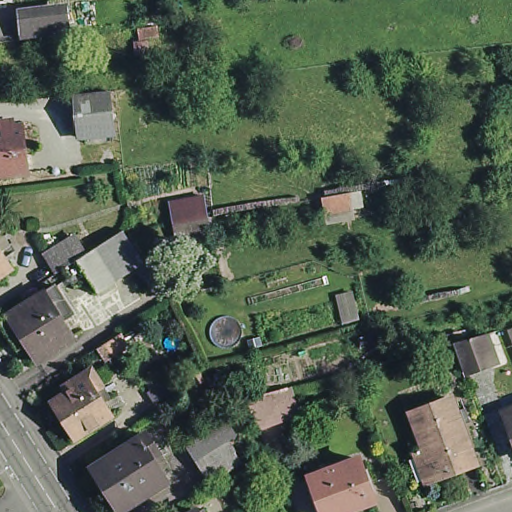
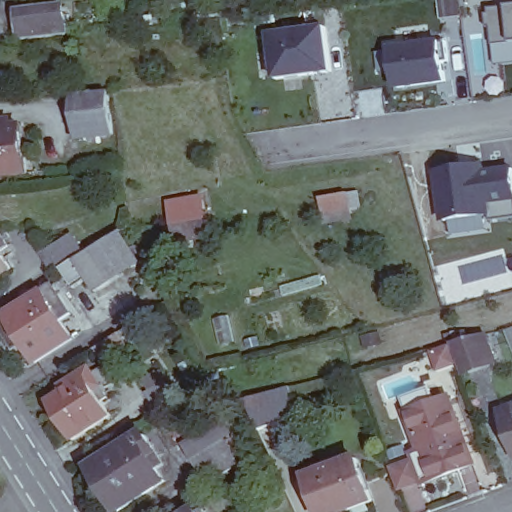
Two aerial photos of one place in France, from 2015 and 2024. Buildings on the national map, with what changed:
new [(489,26),(488,12),(491,12),(491,7),(512,4),(512,42),(494,44),(493,26),(489,26)]
unchanged [(18,35),(17,12),(61,9),(63,30),(18,35)]
new [(276,81),(269,32),(328,25),(334,74),(276,81)]
new [(397,91),(391,47),(442,39),(449,83),(397,91)]
unchanged [(108,97),(113,137),(80,141),(75,101),(108,97)]
unchanged [(22,172),(0,174),(0,121),(6,120),(8,127),(16,126),(22,172)]
new [(494,217),(443,223),(435,170),(486,164),(487,170),(512,167),(512,202),(493,205),(494,217)]
unchanged [(352,207),(328,212),(324,197),(349,192),(352,207)]
unchanged [(204,197),(206,212),(177,217),(173,203),(204,197)]
unchanged [(6,244),(0,248),(0,235),(6,244)]
unchanged [(98,248),(120,235),(140,266),(118,279),(101,289),(94,277),(79,286),(68,267),(63,271),(50,252),(78,235),(91,252),(94,251),(98,248)]
unchanged [(9,266),(0,273),(0,252),(9,266)]
unchanged [(38,362),(23,337),(8,346),(0,332),(0,321),(40,296),(50,290),(68,318),(58,323),(70,342),(38,362)]
unchanged [(123,332),(128,342),(104,356),(98,347),(123,332)]
unchanged [(458,342),(491,333),(499,359),(491,362),(468,371),(467,368),(458,342)]
unchanged [(68,391),(64,385),(93,367),(109,396),(104,399),(112,415),(75,438),(51,401),(68,391)]
unchanged [(291,387),(302,415),(292,417),(263,426),(251,398),(281,390),(291,387)]
unchanged [(415,453),(424,450),(410,413),(449,397),(474,463),(434,477),(424,482),(415,453)]
unchanged [(512,410),(512,428),(506,412),(512,410)]
unchanged [(223,425),(228,433),(231,438),(228,441),(237,463),(207,482),(193,461),(186,446),(220,426),(223,425)]
unchanged [(119,510),(93,467),(146,434),(166,463),(159,467),(166,479),(119,510)]
unchanged [(315,492),(309,477),(358,458),(374,501),(343,512),(322,512),(315,492)]
unchanged [(196,505),(200,512),(183,512),(196,505)]

